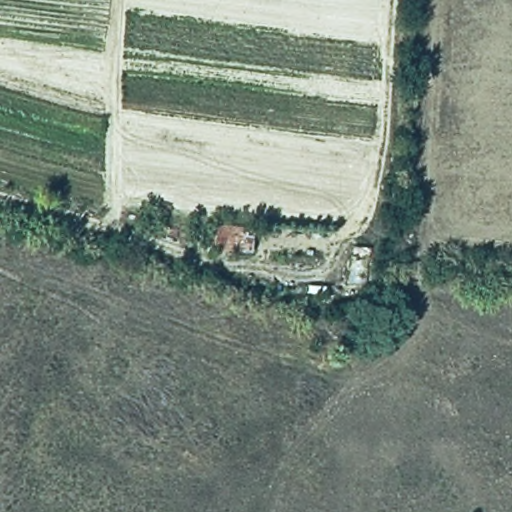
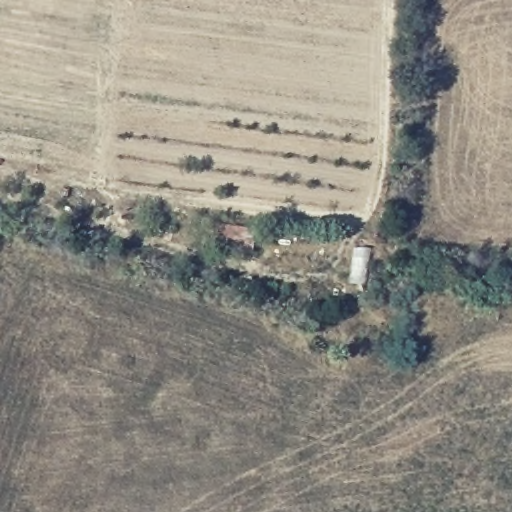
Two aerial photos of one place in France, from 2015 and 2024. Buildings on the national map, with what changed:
unchanged [(252,227),(250,253),(236,252),(235,261),(212,258),(215,224),(252,227)]

